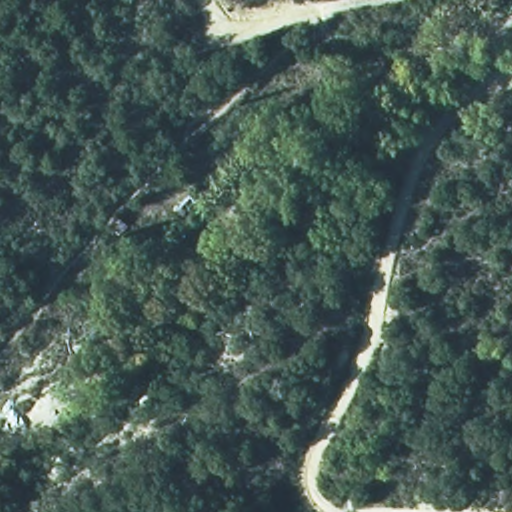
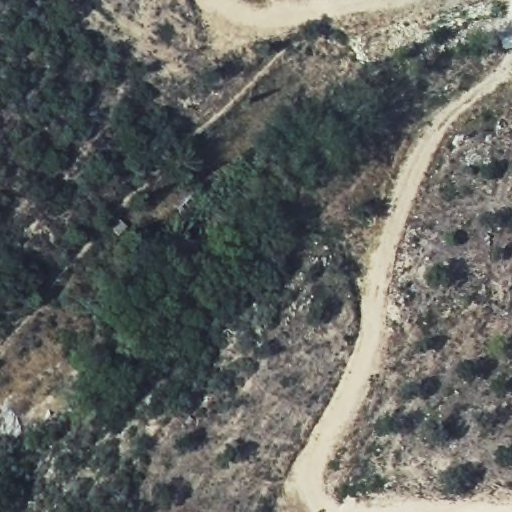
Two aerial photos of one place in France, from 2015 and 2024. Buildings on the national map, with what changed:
unchanged [(115,236),(106,225),(119,212),(131,225),(115,236)]

